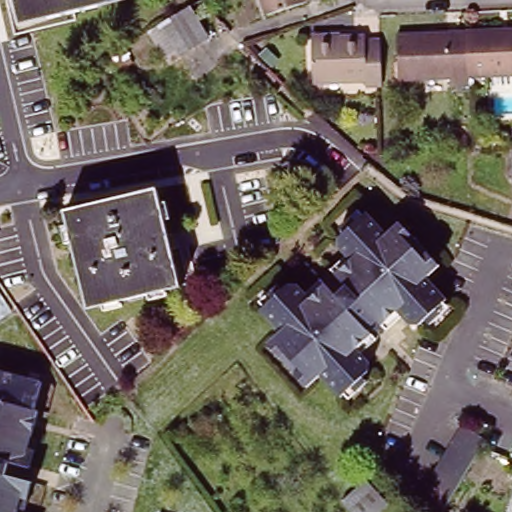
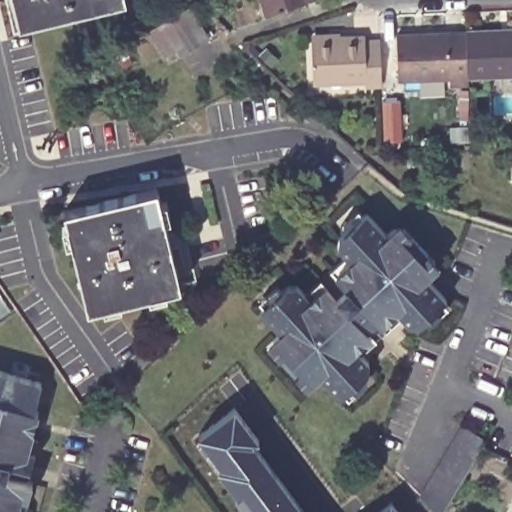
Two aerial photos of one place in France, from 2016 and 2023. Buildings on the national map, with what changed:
unchanged [(21,29),(14,0),(128,0),(128,2),(21,29)]
unchanged [(269,21),(262,0),(308,0),(311,8),(269,21)]
unchanged [(208,38),(179,55),(176,47),(163,55),(149,30),(190,5),(208,38)]
unchanged [(503,34),(512,34),(512,73),(470,75),(467,32),(503,30),(503,34)]
unchanged [(454,85),(454,77),(400,80),(398,35),(467,32),(470,75),(471,85),(454,85)]
unchanged [(367,87),(367,82),(309,86),(305,40),(364,35),(364,40),(381,40),(385,86),(367,87)]
unchanged [(159,191),(183,290),(90,312),(65,214),(159,191)]
unchanged [(369,216),(388,237),(397,230),(436,272),(429,280),(449,302),(422,328),(411,328),(399,315),(358,351),(371,367),(371,375),(344,400),(323,378),(314,384),(276,343),(284,335),(264,313),(289,290),(300,290),(311,302),(352,265),(341,254),(341,241),(369,216)]
unchanged [(10,312),(0,319),(0,297),(10,312)]
unchanged [(42,391),(35,416),(41,419),(21,483),(25,485),(18,512),(0,512),(0,379),(42,391)]
new [(235,495),(239,493),(198,432),(234,406),(259,438),(253,443),(307,512),(248,512),(235,495)]
unchanged [(439,512),(431,512),(414,500),(413,499),(456,427),(480,443),(475,451),(439,512)]
demolished [(387,506),(381,512),(346,512),(340,505),(364,483),(387,506)]
new [(393,500),(401,512),(375,512),(393,500)]

